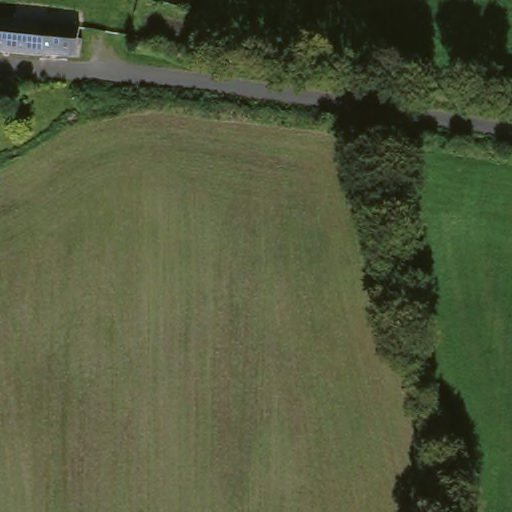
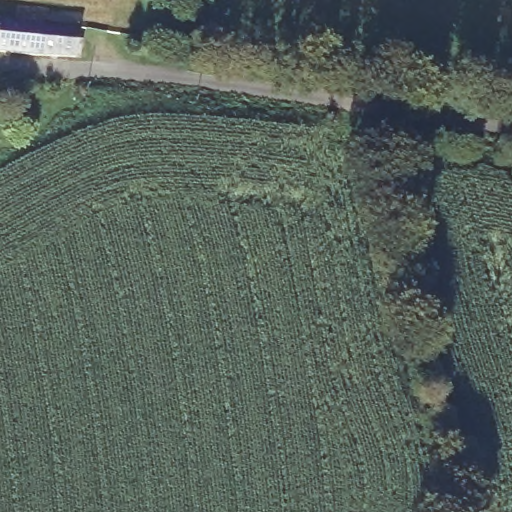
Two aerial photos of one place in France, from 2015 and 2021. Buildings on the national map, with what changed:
unchanged [(0,53),(0,21),(80,36),(74,66),(0,53)]

